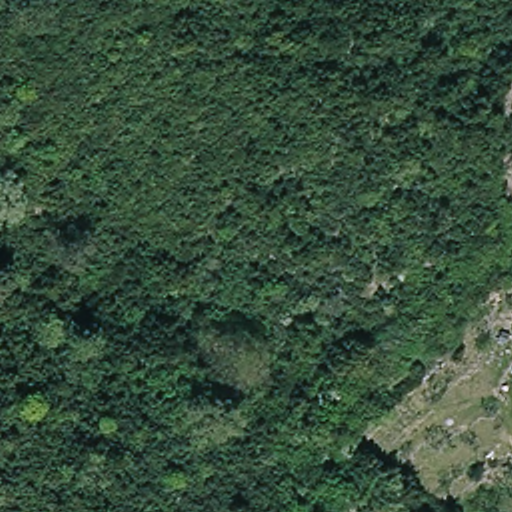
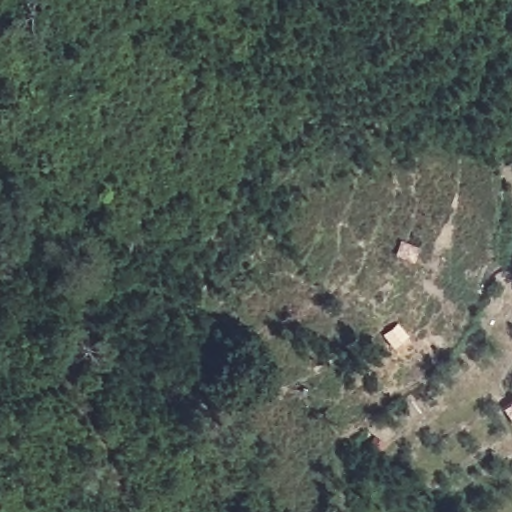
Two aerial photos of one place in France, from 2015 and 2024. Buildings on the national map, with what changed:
unchanged [(370,508),(392,506),(393,512),(371,512),(370,508)]

